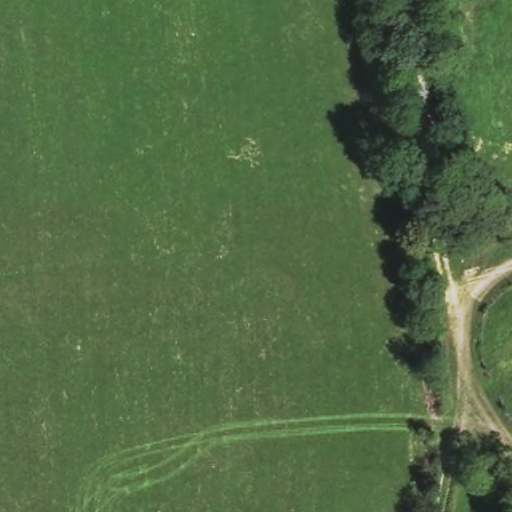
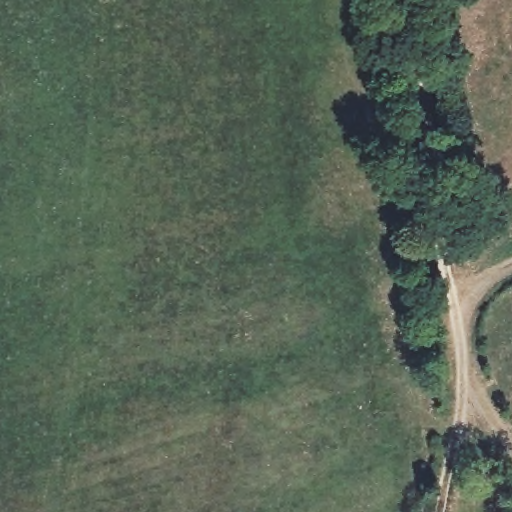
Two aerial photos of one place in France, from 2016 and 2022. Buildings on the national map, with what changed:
[]

